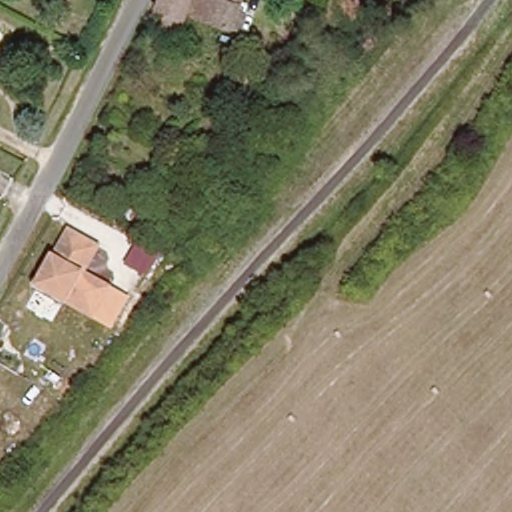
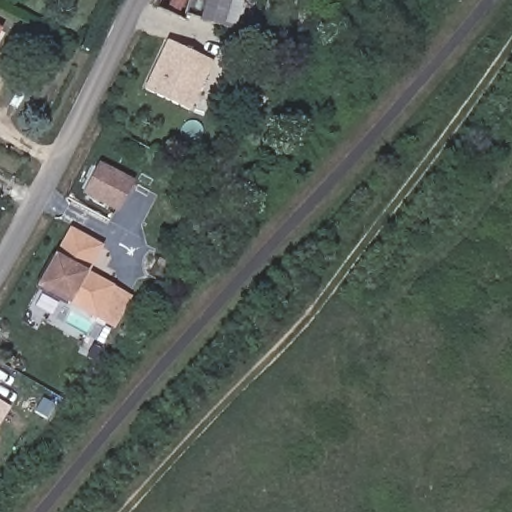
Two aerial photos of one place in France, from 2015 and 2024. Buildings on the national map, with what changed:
unchanged [(159,0),(239,0),(230,24),(186,9),(182,19),(155,8),(159,0)]
new [(192,113),(144,90),(168,40),(216,61),(192,113)]
new [(118,213),(82,193),(99,161),(135,180),(118,213)]
unchanged [(56,256),(70,229),(105,247),(91,273),(117,286),(98,321),(70,305),(38,289),(56,256)]
new [(0,401),(11,408),(0,425),(0,401)]

